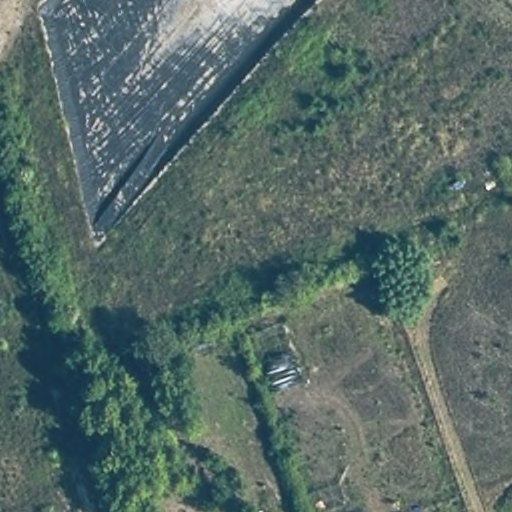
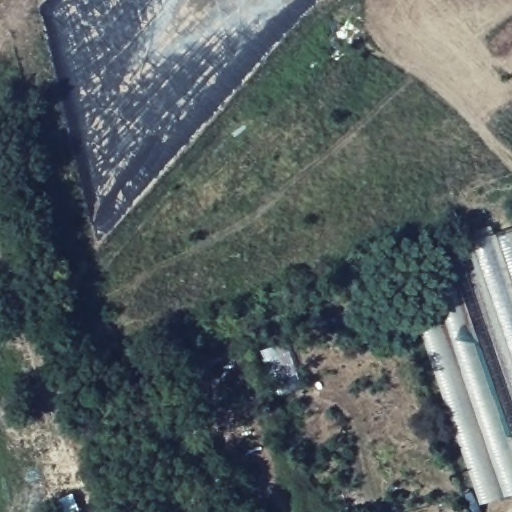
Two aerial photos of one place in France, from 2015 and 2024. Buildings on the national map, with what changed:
new [(481,505),(400,263),(512,228),(512,495),(481,505)]

